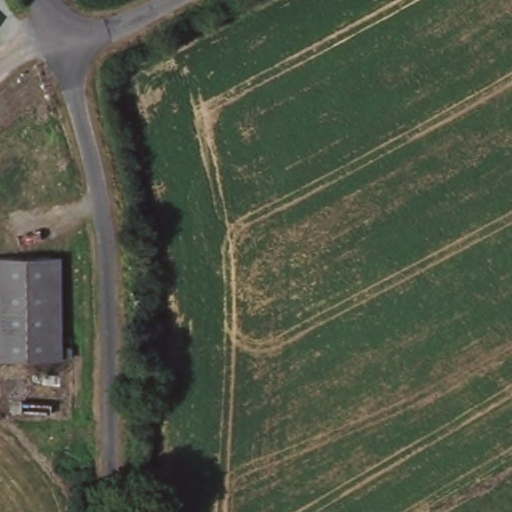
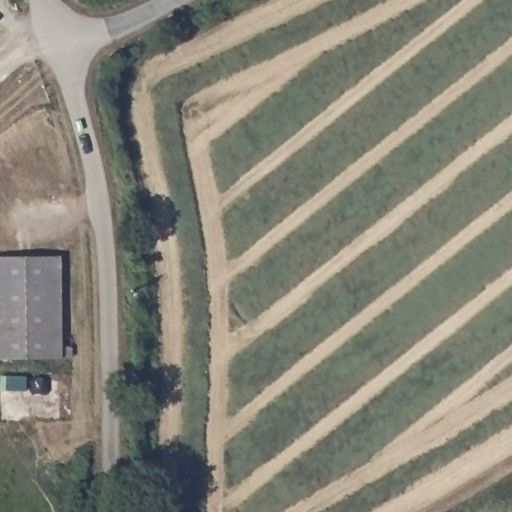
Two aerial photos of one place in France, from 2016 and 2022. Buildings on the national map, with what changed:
unchanged [(59,257),(60,349),(72,349),(72,362),(0,360),(0,260),(59,257)]

